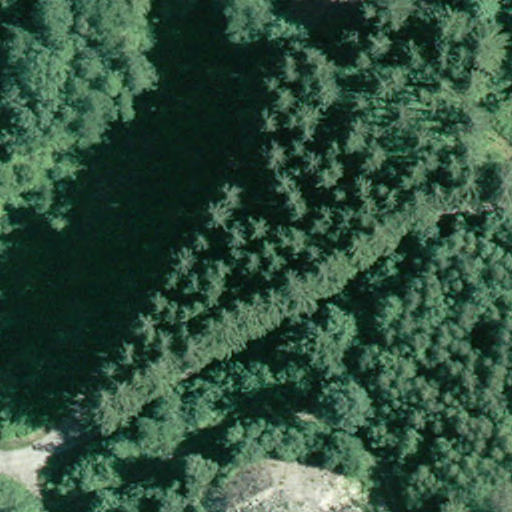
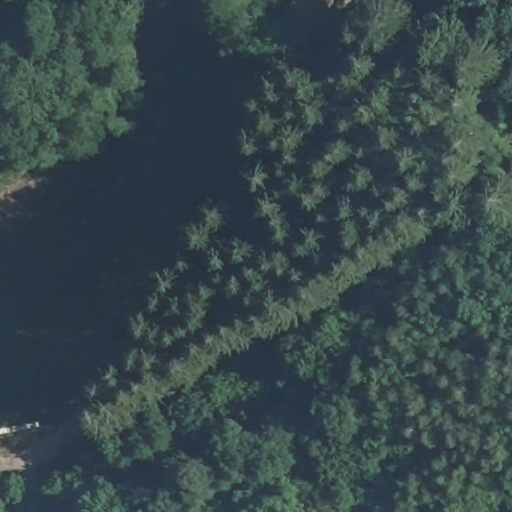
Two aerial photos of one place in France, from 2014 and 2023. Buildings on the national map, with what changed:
unchanged [(279,25),(292,0),(358,0),(324,56),(279,25)]

